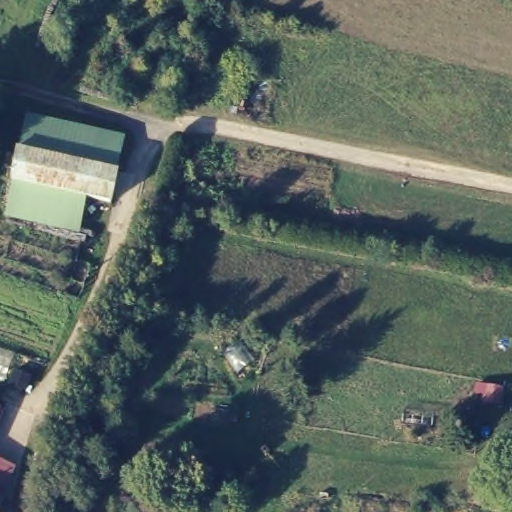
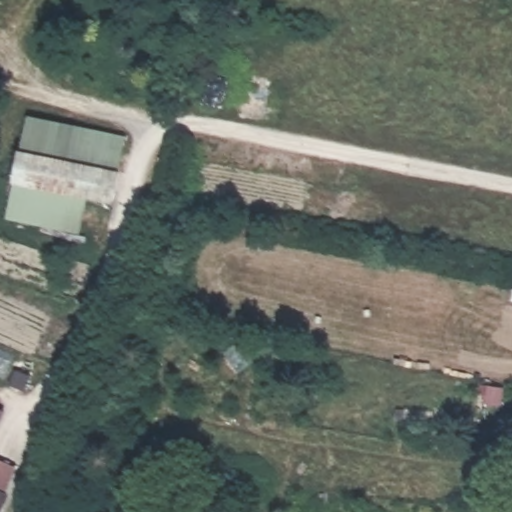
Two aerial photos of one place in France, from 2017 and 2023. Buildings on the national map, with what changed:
unchanged [(123,133),(117,168),(20,148),(26,114),(123,133)]
unchanged [(117,168),(111,200),(87,195),(14,180),(20,148),(117,168)]
unchanged [(87,195),(79,234),(7,219),(14,180),(87,195)]
unchanged [(0,495),(0,465),(10,469),(0,495)]
unchanged [(2,497),(0,502),(0,496),(2,497)]

